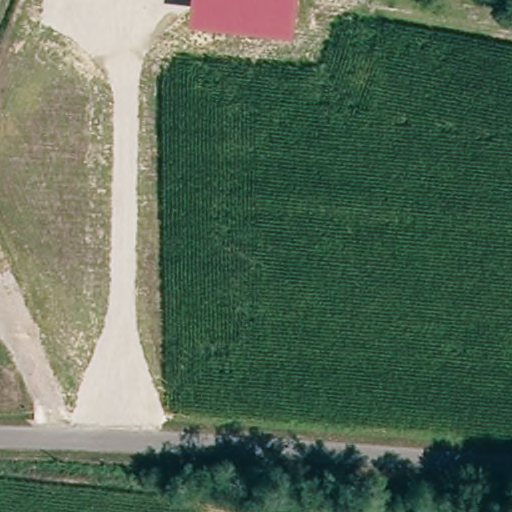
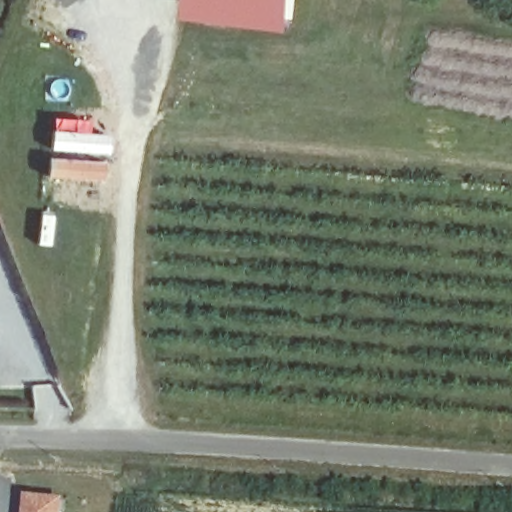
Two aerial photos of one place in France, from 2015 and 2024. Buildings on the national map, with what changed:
unchanged [(293,35),(189,22),(192,0),(297,0),(293,35)]
new [(65,498),(63,512),(25,512),(26,495),(65,498)]

